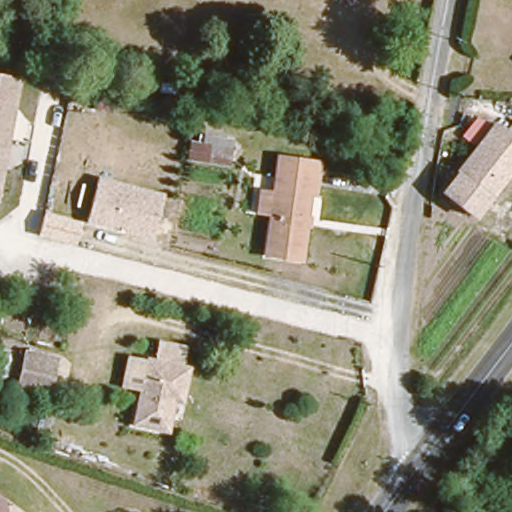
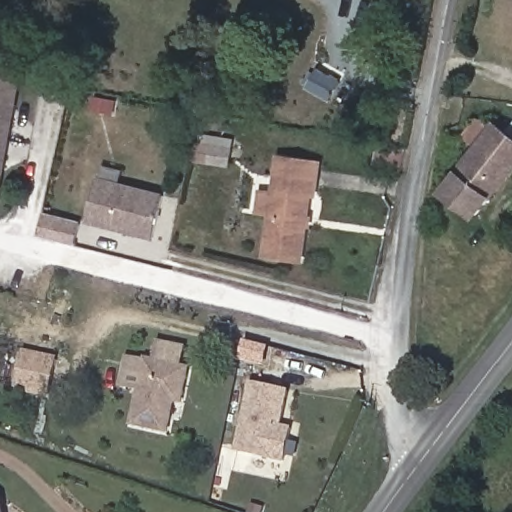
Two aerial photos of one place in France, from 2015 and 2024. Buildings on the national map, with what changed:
unchanged [(0,184),(0,74),(19,78),(0,184)]
unchanged [(498,122),(512,133),(512,169),(478,214),(447,190),(498,122)]
unchanged [(222,146),(219,159),(201,155),(204,142),(222,146)]
unchanged [(266,248),(285,155),(324,162),(319,187),(315,187),(301,255),(266,248)]
unchanged [(153,240),(89,222),(101,178),(165,193),(153,240)]
unchanged [(45,213),(82,222),(76,246),(39,237),(45,213)]
unchanged [(171,396),(169,404),(173,405),(168,429),(133,420),(142,385),(126,381),(132,353),(149,358),(149,356),(156,357),(160,342),(186,348),(182,365),(190,367),(182,399),(171,396)]
new [(270,347),(265,367),(240,362),(245,342),(270,347)]
unchanged [(59,358),(50,392),(17,382),(26,349),(59,358)]
new [(293,427),(286,461),(236,452),(250,383),(290,392),(282,425),(293,427)]
unchanged [(4,512),(0,512),(0,500),(3,502),(4,512)]

